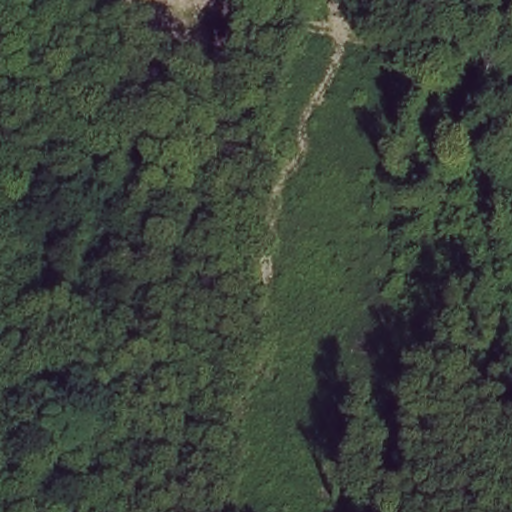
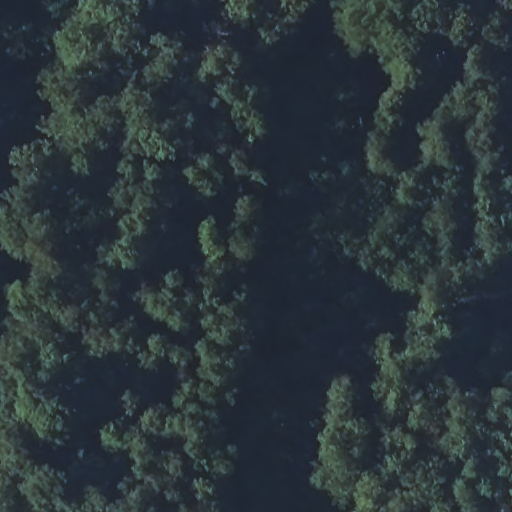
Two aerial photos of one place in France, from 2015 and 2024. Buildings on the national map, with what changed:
[]

